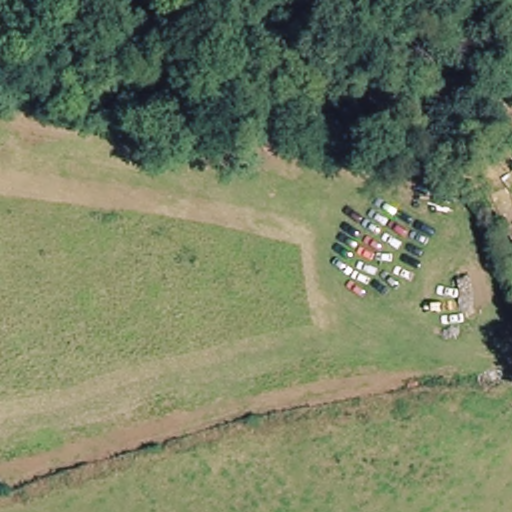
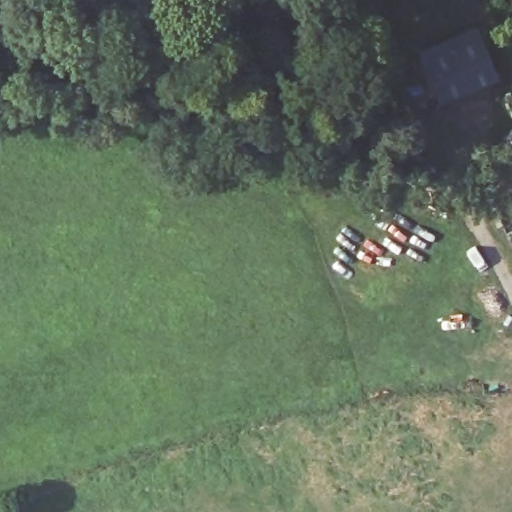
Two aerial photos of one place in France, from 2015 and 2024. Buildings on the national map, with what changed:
new [(497,78),(438,102),(418,49),(477,26),(497,78)]

